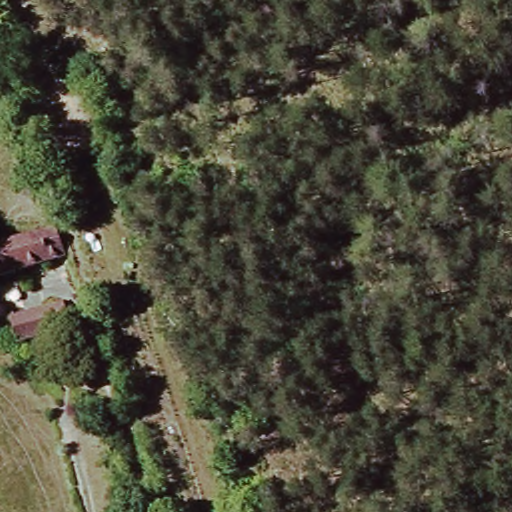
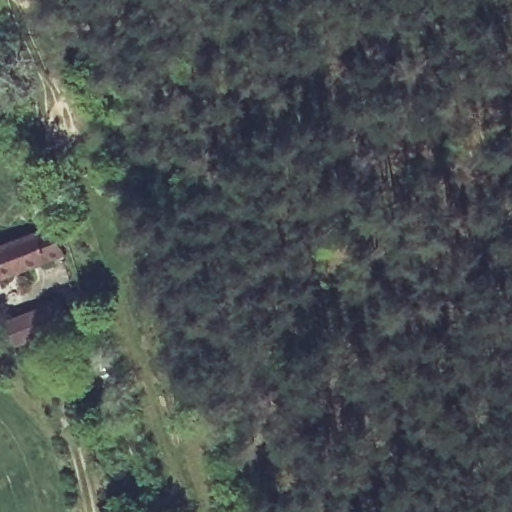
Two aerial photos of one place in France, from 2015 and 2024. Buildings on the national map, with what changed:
unchanged [(68,255),(0,279),(0,246),(60,224),(68,255)]
unchanged [(17,341),(13,327),(11,320),(62,303),(70,325),(17,341)]

